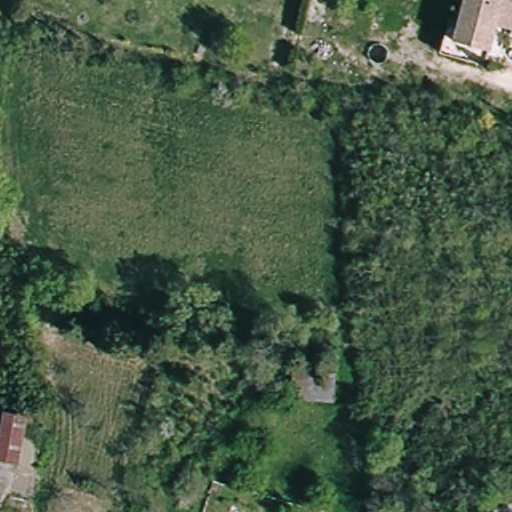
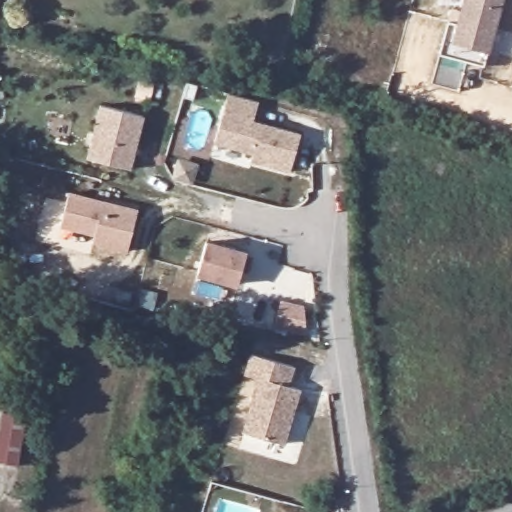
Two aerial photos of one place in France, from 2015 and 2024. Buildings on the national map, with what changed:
unchanged [(452,44),(489,54),(485,69),(440,57),(456,0),(464,0),(452,44)]
unchanged [(495,26),(489,54),(452,44),(464,0),(512,0),(512,32),(495,26)]
new [(258,103),(253,122),(261,125),(301,135),(291,174),(250,163),(252,156),(214,146),(228,94),(258,103)]
new [(100,104),(145,115),(132,169),(87,156),(100,104)]
new [(100,182),(95,201),(138,212),(127,253),(91,244),(93,237),(59,228),(72,175),(100,182)]
new [(197,275),(206,238),(248,249),(236,286),(197,275)]
new [(281,298),(304,303),(307,331),(275,323),(281,298)]
new [(251,351),(294,365),(288,384),(300,388),(285,442),(242,430),(259,375),(245,370),(251,351)]
unchanged [(27,419),(19,465),(0,462),(0,428),(3,414),(27,419)]

